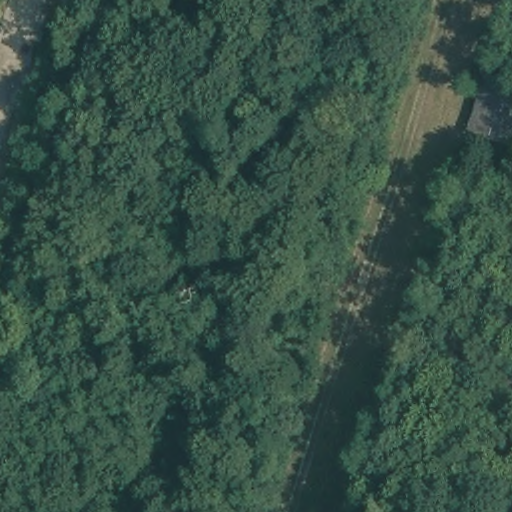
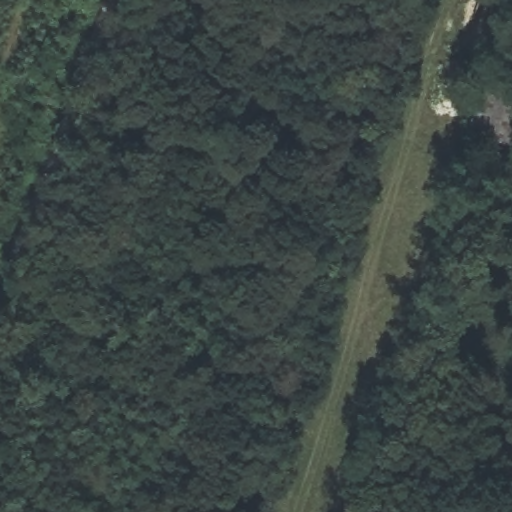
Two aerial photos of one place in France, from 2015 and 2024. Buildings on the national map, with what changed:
unchanged [(489,75),(512,81),(512,139),(472,131),(489,75)]

